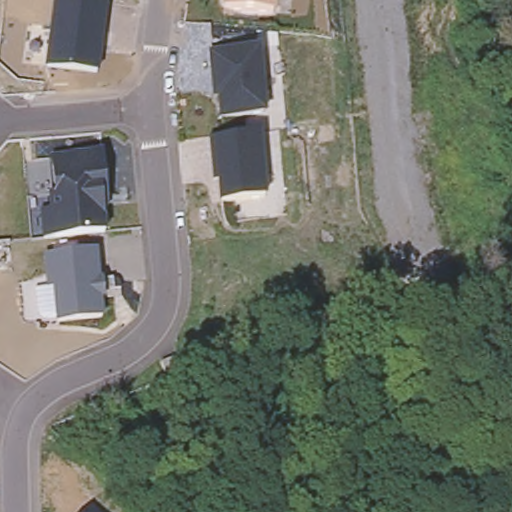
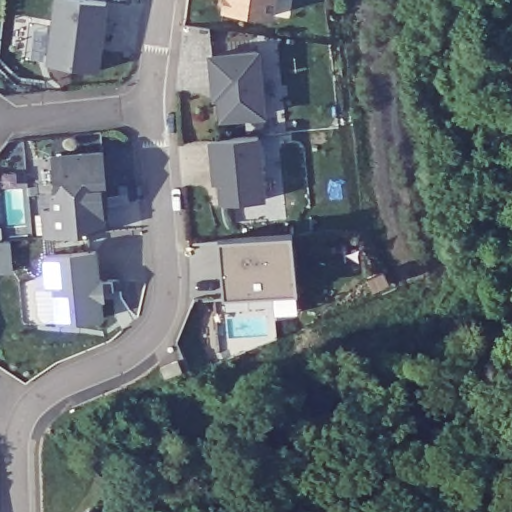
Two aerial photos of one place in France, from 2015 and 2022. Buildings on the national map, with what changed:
unchanged [(100,75),(45,67),(55,0),(94,0),(110,2),(100,75)]
unchanged [(225,10),(226,0),(276,0),(273,17),(225,10)]
unchanged [(214,89),(211,56),(259,52),(265,116),(222,120),(220,99),(215,99),(214,89)]
unchanged [(214,172),(211,140),(259,135),(265,199),(222,204),(220,182),(215,182),(214,172)]
unchanged [(43,210),(53,209),(52,193),(57,192),(54,156),(103,151),(107,189),(108,205),(103,206),(106,232),(56,237),(46,238),(43,210)]
new [(275,315),(273,294),(204,300),(198,242),(293,233),(298,291),(297,291),(300,312),(275,315)]
new [(0,273),(0,242),(5,242),(12,241),(15,271),(0,273)]
unchanged [(60,321),(56,286),(50,287),(47,255),(96,250),(100,281),(96,282),(97,297),(101,297),(103,317),(60,321)]
unchanged [(166,375),(162,365),(179,358),(183,367),(166,375)]
unchanged [(91,505),(99,512),(84,512),(91,505)]

